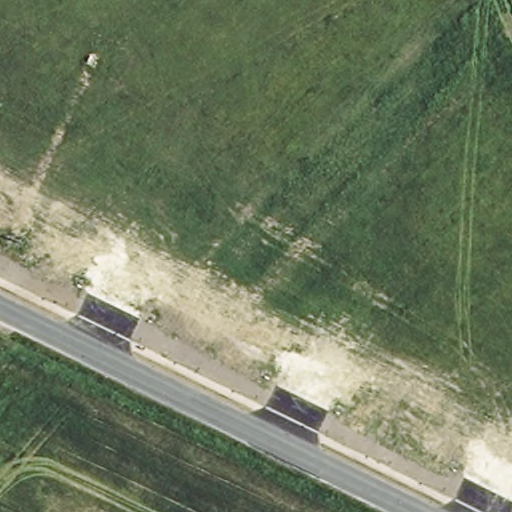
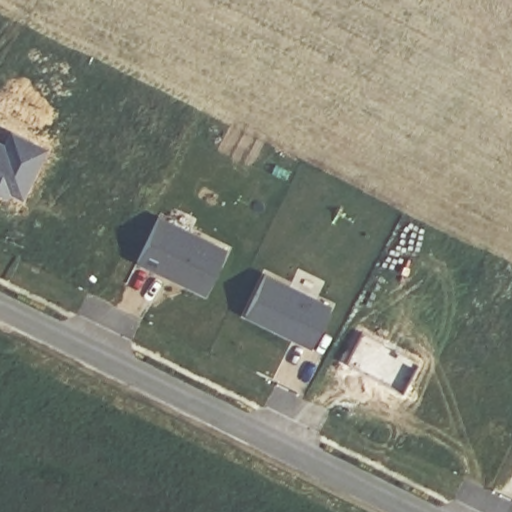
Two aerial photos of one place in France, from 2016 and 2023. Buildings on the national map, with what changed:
new [(205,294),(137,262),(160,214),(229,248),(205,294)]
new [(311,346),(247,314),(267,272),(332,303),(311,346)]

